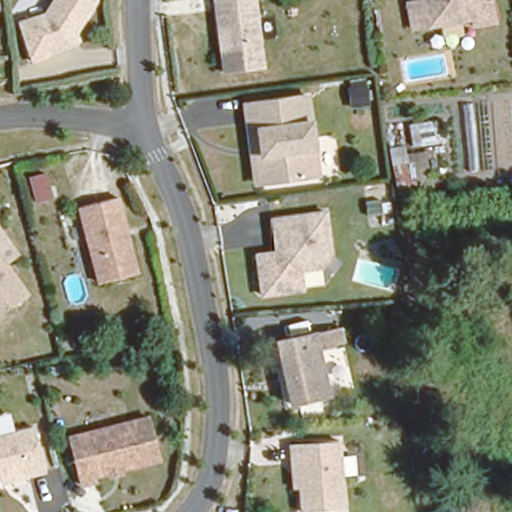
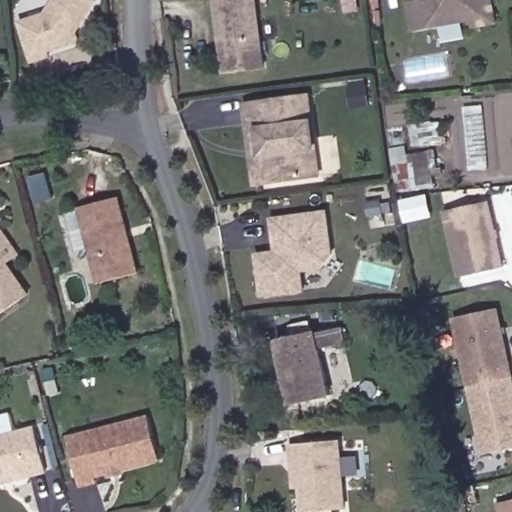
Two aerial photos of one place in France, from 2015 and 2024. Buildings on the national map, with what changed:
unchanged [(76,32),(68,35),(70,44),(48,50),(50,55),(34,61),(22,21),(48,12),(57,0),(98,0),(92,12),(76,32)]
unchanged [(222,72),(219,38),(223,37),(223,30),(218,29),(216,0),(256,0),(261,70),(222,72)]
unchanged [(471,22),(468,17),(409,29),(404,2),(417,0),(481,0),(481,3),(487,2),(491,19),(471,22)]
unchanged [(247,104),(257,103),(309,100),(316,178),(263,183),(254,184),(247,104)]
unchanged [(440,126),(442,149),(436,149),(439,186),(396,185),(389,147),(403,144),(406,151),(414,150),(411,127),(440,126)]
unchanged [(136,273),(99,281),(80,205),(118,197),(136,273)]
new [(500,266),(457,275),(446,211),(488,203),(500,266)]
unchanged [(321,283),(299,285),(261,288),(257,249),(283,249),(282,234),(273,233),(273,215),(326,209),(329,252),(340,260),(321,283)]
unchanged [(14,256),(3,265),(23,296),(0,311),(0,228),(14,256)]
new [(498,312),(512,377),(512,379),(470,388),(456,320),(498,312)]
unchanged [(341,340),(317,346),(329,392),(290,402),(275,337),(337,323),(341,340)]
new [(470,388),(512,379),(512,448),(483,454),(470,388)]
unchanged [(157,459),(95,472),(95,477),(80,481),(70,434),(150,417),(157,459)]
unchanged [(45,475),(29,477),(28,472),(0,478),(0,437),(36,430),(45,475)]
unchanged [(346,507),(303,508),(302,458),(294,458),(293,442),(343,440),(346,507)]
new [(512,501),(512,512),(499,512),(497,505),(512,501)]

